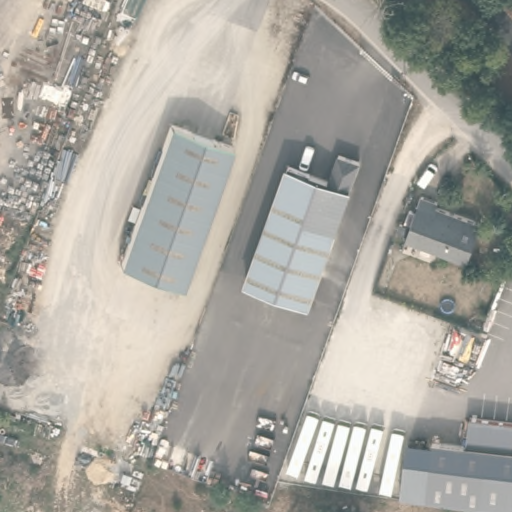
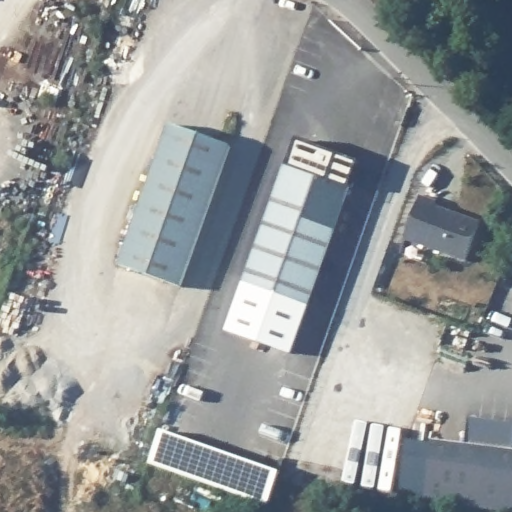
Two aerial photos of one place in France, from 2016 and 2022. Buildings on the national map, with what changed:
unchanged [(172,124),(233,146),(182,287),(121,265),(172,124)]
unchanged [(247,284),(289,167),(330,181),(339,155),(360,163),(308,306),(247,284)]
unchanged [(437,202),(436,207),(480,223),(467,264),(406,241),(420,198),(437,202)]
new [(308,306),(291,354),(230,331),(247,284),(308,306)]
unchanged [(512,512),(426,501),(433,441),(467,446),(470,417),(512,423),(512,512)]
new [(161,429),(282,472),(270,506),(150,463),(161,429)]
unchanged [(397,497),(405,438),(433,441),(426,501),(397,497)]

